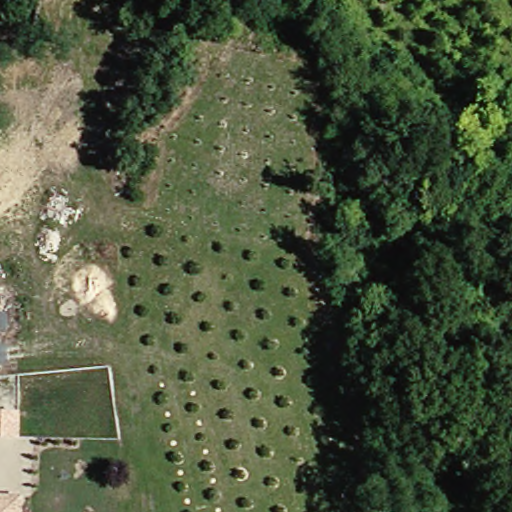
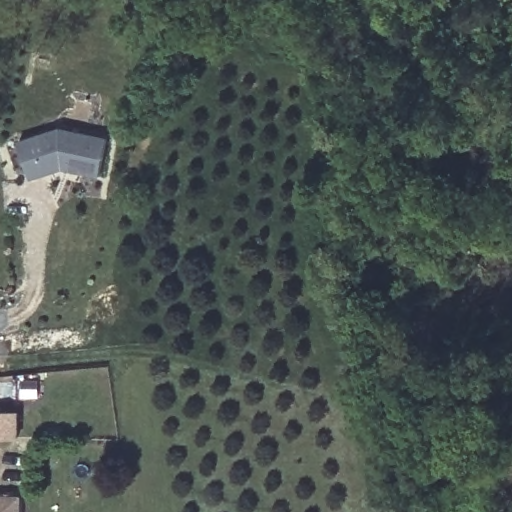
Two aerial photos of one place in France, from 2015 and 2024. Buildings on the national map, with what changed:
new [(62,128),(109,139),(102,178),(65,170),(32,181),(19,142),(62,128)]
new [(16,439),(0,439),(0,414),(16,414),(16,439)]
unchanged [(23,512),(0,512),(0,495),(23,495),(23,512)]

